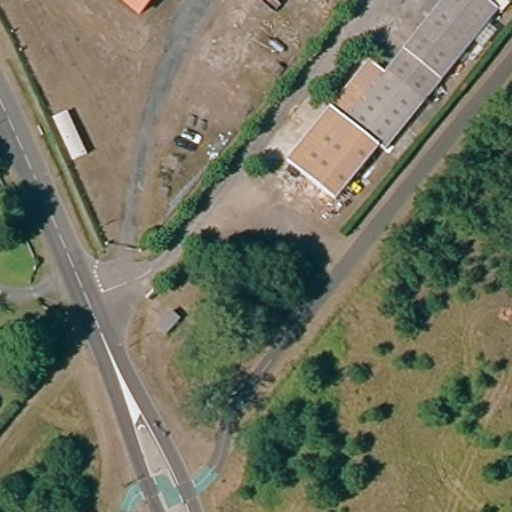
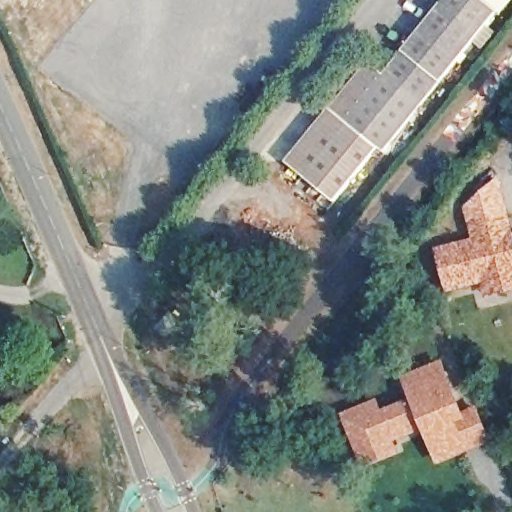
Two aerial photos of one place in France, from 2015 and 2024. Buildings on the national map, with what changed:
unchanged [(143,19),(118,0),(157,0),(143,19)]
unchanged [(375,155),(331,209),(280,167),(364,67),(380,80),(446,0),(494,0),(504,7),(495,19),(380,159),(375,155)]
new [(487,298),(483,286),(447,293),(437,249),(474,239),(470,224),(511,213),(512,217),(512,292),(487,298)]
unchanged [(172,333),(159,349),(149,340),(163,325),(172,333)]
new [(423,430),(397,443),(401,456),(362,469),(341,416),(379,400),(382,410),(411,398),(403,376),(444,360),(465,411),(479,407),(493,445),(440,466),(423,430)]

